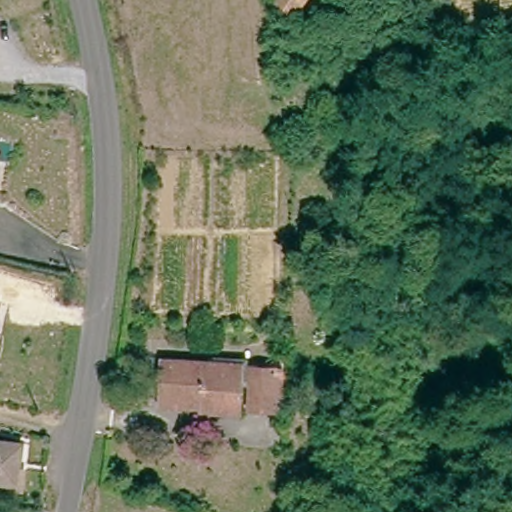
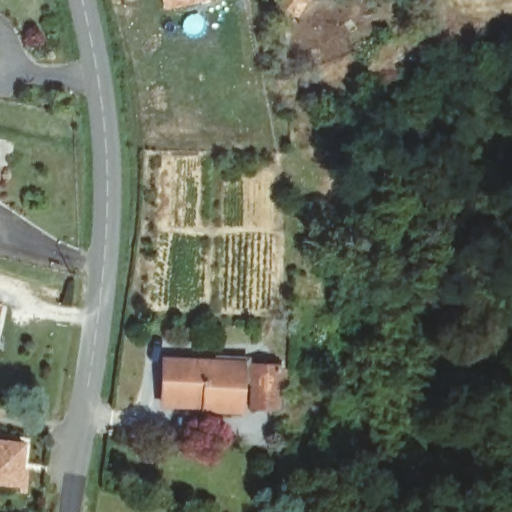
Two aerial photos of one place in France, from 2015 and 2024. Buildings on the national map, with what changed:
new [(161,10),(159,0),(205,0),(161,10)]
unchanged [(241,415),(203,412),(202,402),(165,399),(168,364),(245,368),(241,415)]
unchanged [(254,410),(254,369),(269,370),(279,371),(276,411),(271,411),(254,410)]
unchanged [(3,482),(4,477),(0,477),(0,438),(24,439),(21,463),(26,463),(25,483),(3,482)]

